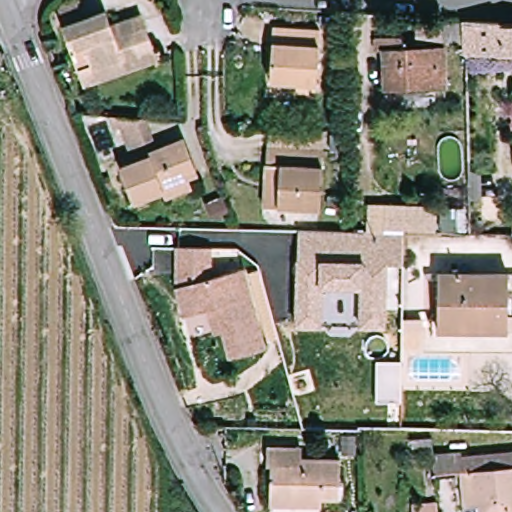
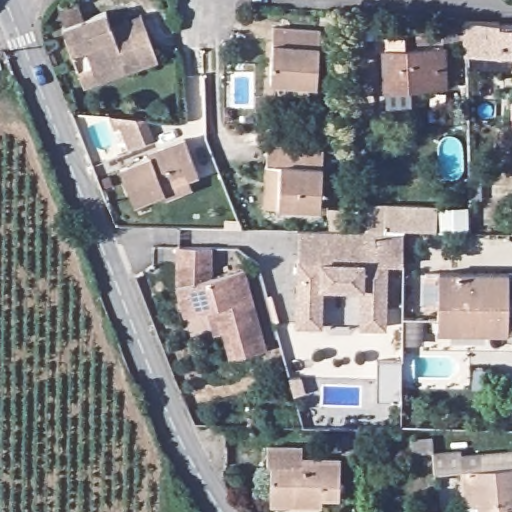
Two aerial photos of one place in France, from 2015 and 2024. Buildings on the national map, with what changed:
unchanged [(80,73),(62,25),(106,9),(111,22),(142,10),(147,25),(159,59),(128,70),(85,84),(80,73)]
unchanged [(461,19),(493,21),(494,23),(512,22),(512,50),(463,52),(462,42),(461,19)]
unchanged [(298,91),(300,82),(272,80),(276,27),(323,31),(320,84),(312,83),(312,92),(298,91)]
unchanged [(446,83),(385,85),(383,45),(375,45),(375,35),(403,34),(404,45),(446,43),(446,83)]
unchanged [(140,116),(148,137),(125,146),(112,114),(140,116)]
unchanged [(165,199),(162,194),(133,205),(120,171),(149,159),(147,155),(183,141),(197,176),(186,180),(190,189),(165,199)]
unchanged [(267,181),(269,147),(325,149),(321,209),(280,206),(266,205),(267,181)]
unchanged [(390,227),(390,204),(438,204),(439,229),(390,227)]
unchanged [(361,326),(361,313),(362,287),(322,286),(321,312),(321,325),(297,323),(297,312),(299,229),(306,229),(346,230),(397,231),(404,232),(403,263),(398,263),(386,263),(385,313),(385,326),(361,326)]
unchanged [(224,330),(216,332),(210,308),(195,312),(186,315),(184,306),(178,285),(179,246),(211,246),(210,277),(244,267),(266,347),(238,355),(231,357),(224,330)]
unchanged [(440,319),(441,272),(510,274),(509,332),(486,331),(439,329),(440,319)]
unchanged [(296,503),(268,502),(270,465),(265,465),(266,446),(302,447),(302,457),(340,460),(337,497),(320,497),(320,504),(296,503)]
unchanged [(437,467),(435,448),(463,447),(464,451),(512,448),(512,512),(466,512),(463,466),(437,467)]
unchanged [(442,497),(445,512),(415,512),(413,499),(442,497)]

